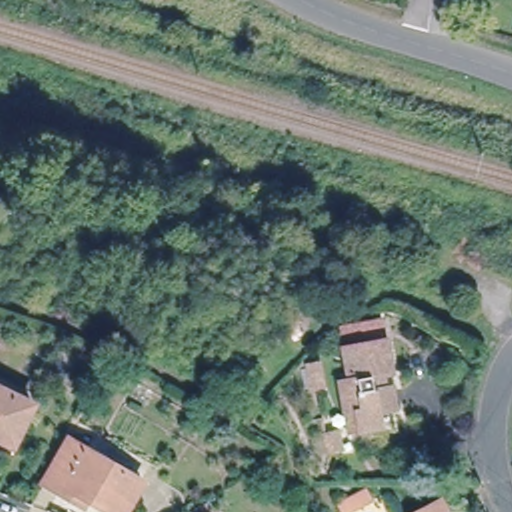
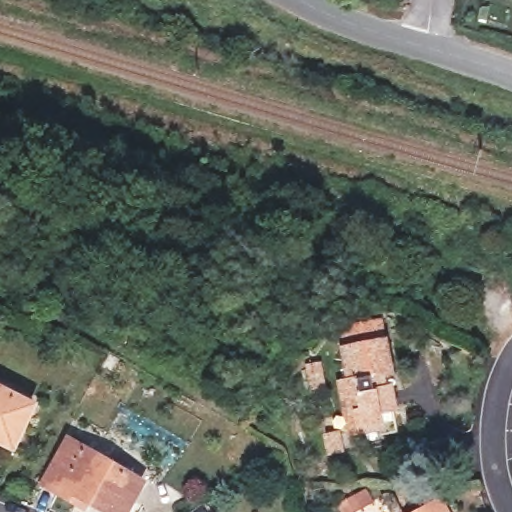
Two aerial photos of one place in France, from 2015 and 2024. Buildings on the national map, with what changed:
unchanged [(343,413),(337,378),(346,376),(337,327),(381,319),(391,375),(383,377),(385,389),(390,388),(395,410),(399,433),(383,436),(381,427),(362,430),(347,432),(343,413)]
unchanged [(14,447),(0,440),(0,390),(34,406),(14,447)]
unchanged [(46,485),(71,441),(144,482),(127,512),(108,512),(89,500),(85,507),(76,502),(46,485)]
unchanged [(449,512),(415,512),(441,498),(449,512)]

